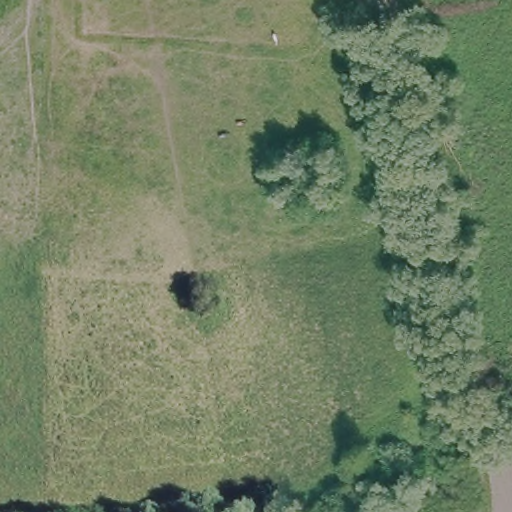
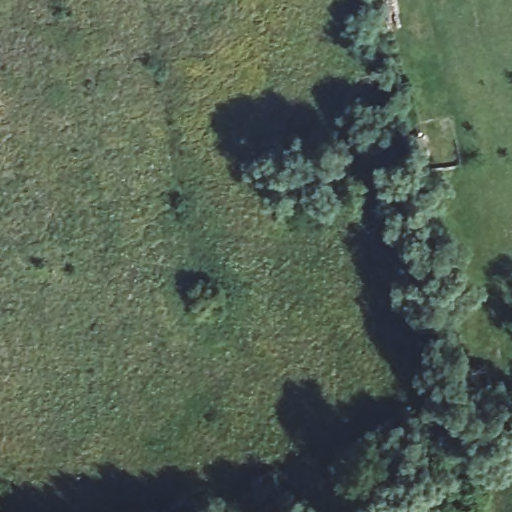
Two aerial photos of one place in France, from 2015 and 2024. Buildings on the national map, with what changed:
[]

